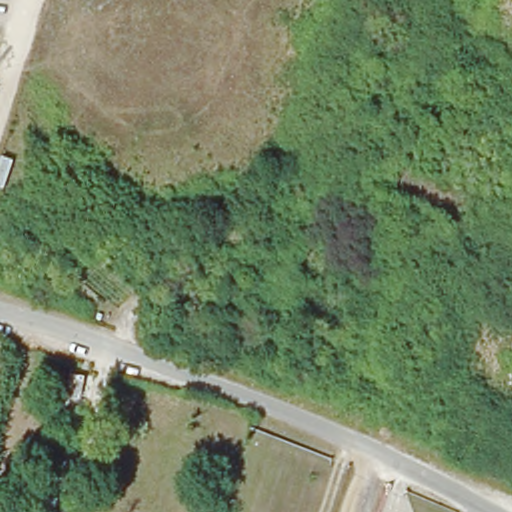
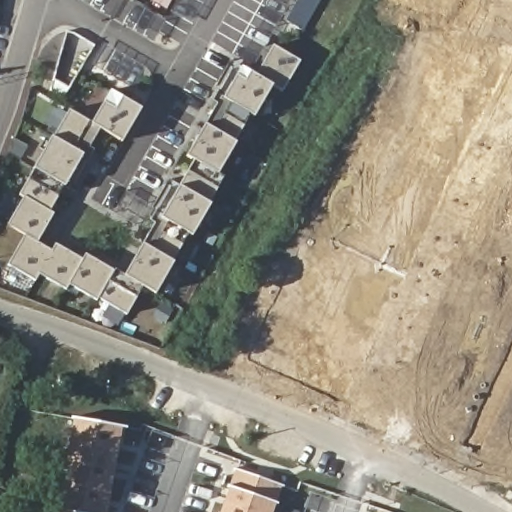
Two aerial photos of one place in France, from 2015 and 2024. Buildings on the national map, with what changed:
new [(70,27),(97,42),(66,96),(51,87),(70,27)]
new [(284,91),(273,85),(257,76),(273,46),(301,62),(284,91)]
new [(257,76),(273,85),(255,117),(251,115),(223,98),(242,67),(257,76)]
new [(122,142),(99,129),(92,125),(93,122),(111,91),(142,109),(122,142)]
new [(235,141),(207,124),(222,97),(223,98),(251,115),(235,141)]
new [(53,136),(69,109),(93,122),(92,125),(99,129),(85,154),(53,136)]
new [(235,141),(237,142),(219,174),(195,160),(188,156),(207,124),(235,141)]
new [(85,154),(66,186),(34,169),(53,136),(85,154)]
new [(227,178),(212,204),(181,186),(195,160),(219,174),(227,178)]
new [(51,212),(25,197),(21,195),(34,169),(66,186),(51,212)]
new [(212,204),(194,236),(189,234),(162,217),(181,186),(212,204)]
new [(51,212),(54,214),(37,242),(27,236),(8,224),(25,197),(51,212)]
new [(173,260),(144,243),(159,216),(162,217),(189,234),(173,260)]
new [(40,274),(35,281),(8,265),(27,236),(37,242),(52,251),(40,274)]
new [(70,284),(67,290),(40,274),(52,251),(56,243),(84,260),(70,284)]
new [(173,260),(176,262),(156,294),(143,287),(125,276),(144,243),(173,260)]
new [(98,300),(70,284),(84,260),(87,254),(115,271),(100,297),(98,300)]
new [(100,297),(115,271),(115,270),(125,276),(143,287),(127,314),(100,297)]
new [(65,476),(70,477),(80,418),(126,427),(117,473),(111,472),(107,488),(110,490),(106,512),(59,512),(65,476)]
new [(238,470),(280,484),(270,512),(223,512),(238,470)]

